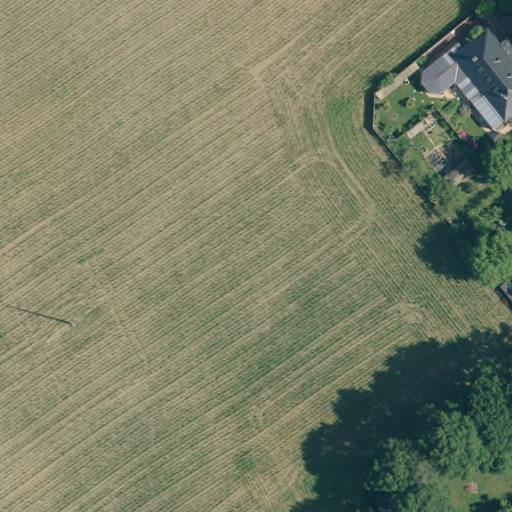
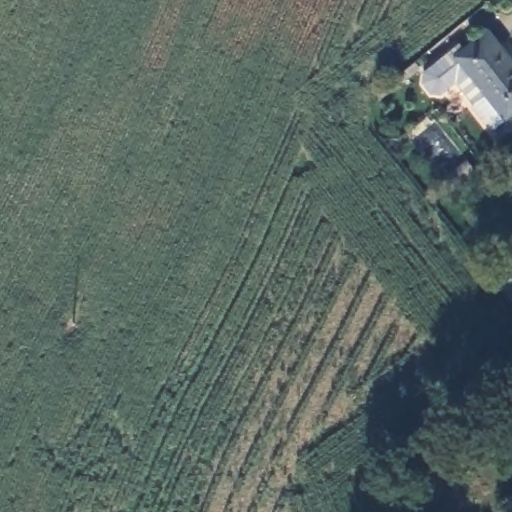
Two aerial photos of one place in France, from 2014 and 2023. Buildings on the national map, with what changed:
unchanged [(456,82),(440,95),(430,94),(422,83),(423,72),(459,45),(464,52),(488,32),(512,63),(512,115),(494,130),(456,82)]
unchanged [(510,190),(512,188),(512,193),(510,190)]
unchanged [(394,472),(402,482),(383,495),(390,505),(382,511),(369,490),(394,472)]

